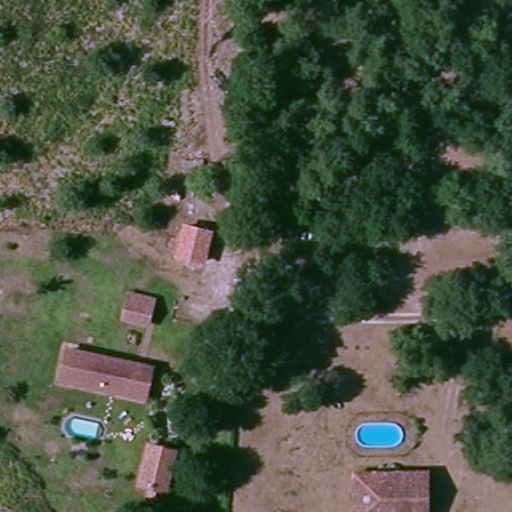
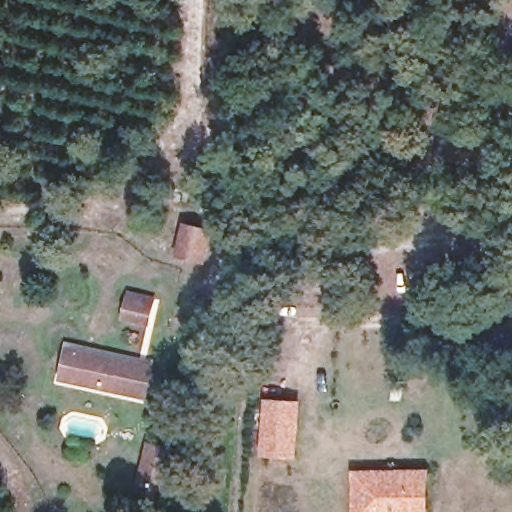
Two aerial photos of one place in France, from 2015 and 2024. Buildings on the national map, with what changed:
unchanged [(215,228),(207,264),(172,257),(180,220),(215,228)]
unchanged [(124,315),(128,292),(154,298),(151,320),(124,315)]
unchanged [(147,397),(129,394),(121,392),(62,375),(72,343),(136,361),(152,365),(147,397)]
new [(263,398),(300,401),(296,458),(259,455),(263,398)]
unchanged [(142,486),(147,447),(174,451),(167,489),(142,486)]
unchanged [(428,471),(427,512),(361,512),(361,469),(428,471)]

